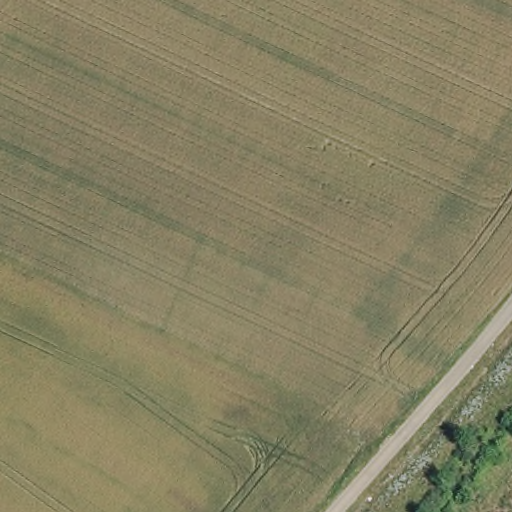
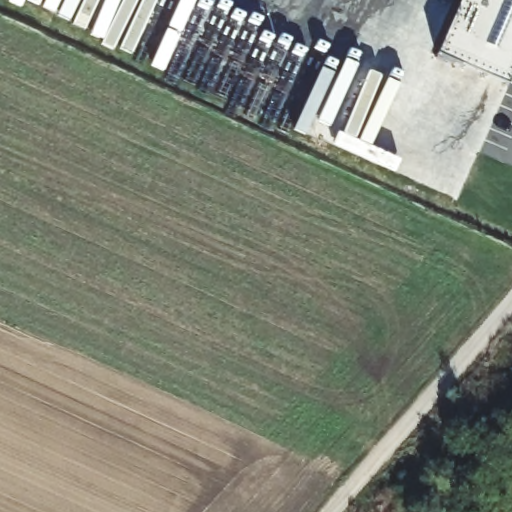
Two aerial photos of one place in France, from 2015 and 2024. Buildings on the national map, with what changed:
new [(436,55),(460,0),(512,0),(512,73),(506,85),(436,55)]

